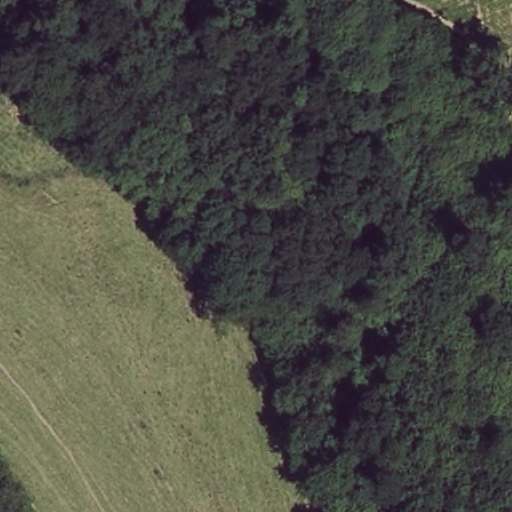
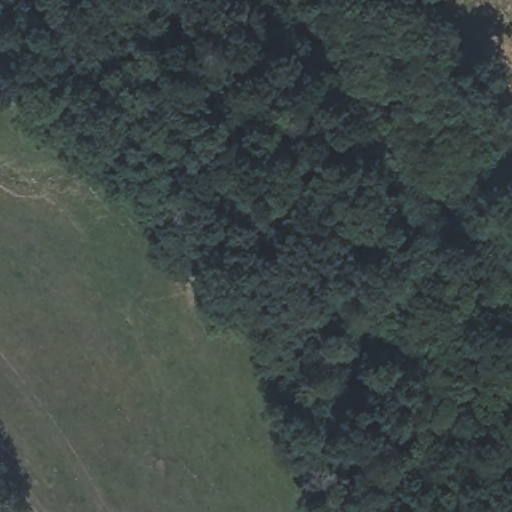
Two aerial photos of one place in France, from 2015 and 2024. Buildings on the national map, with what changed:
[]

